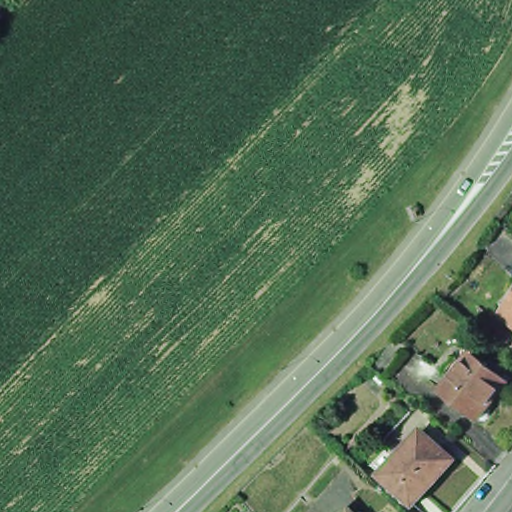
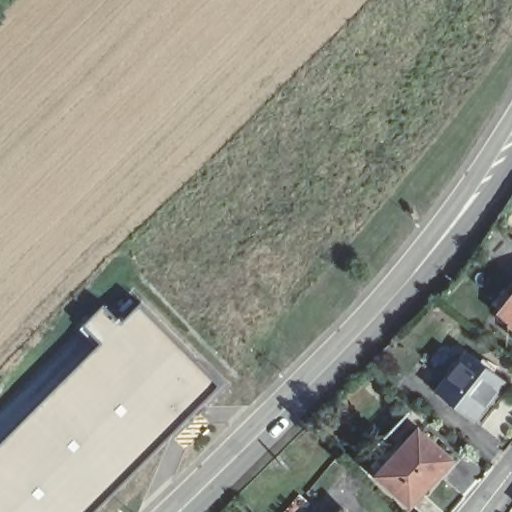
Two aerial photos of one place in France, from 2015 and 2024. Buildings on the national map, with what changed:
new [(85,322),(106,301),(124,319),(143,300),(224,382),(190,416),(194,420),(188,425),(184,422),(94,512),(0,512),(0,443),(103,340),(85,322)]
unchanged [(502,317),(505,312),(512,303),(512,325),(502,317)]
unchanged [(491,363),(494,358),(504,367),(501,371),(511,380),(479,418),(444,390),(454,377),(448,372),(461,356),(467,362),(476,351),(491,363)]
unchanged [(459,463),(418,510),(384,480),(387,477),(378,469),(391,453),(401,462),(426,434),(459,463)]
unchanged [(349,512),(343,512),(346,509),(349,512)]

